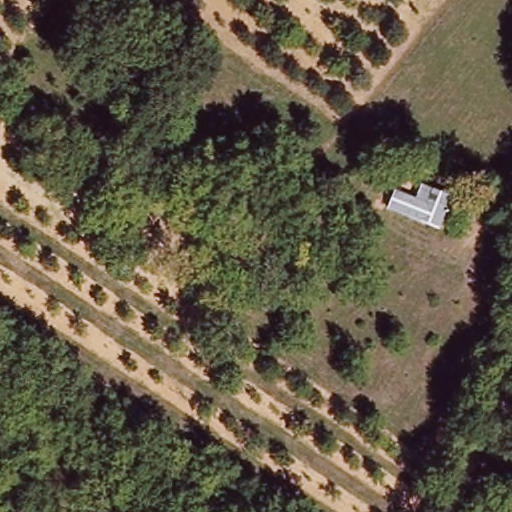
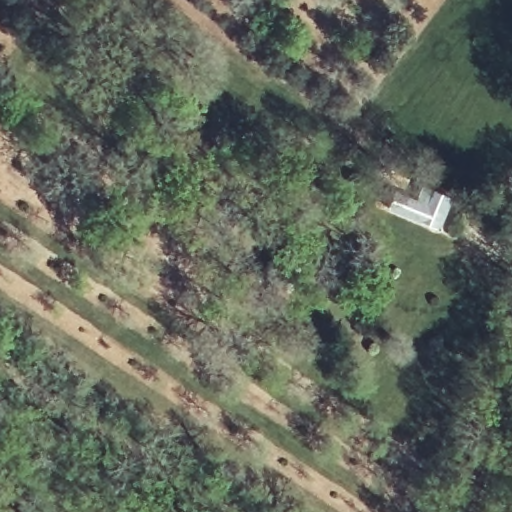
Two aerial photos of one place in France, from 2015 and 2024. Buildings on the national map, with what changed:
unchanged [(402,211),(386,205),(394,182),(410,188),(415,190),(421,174),(440,182),(434,198),(425,220),(402,211)]

